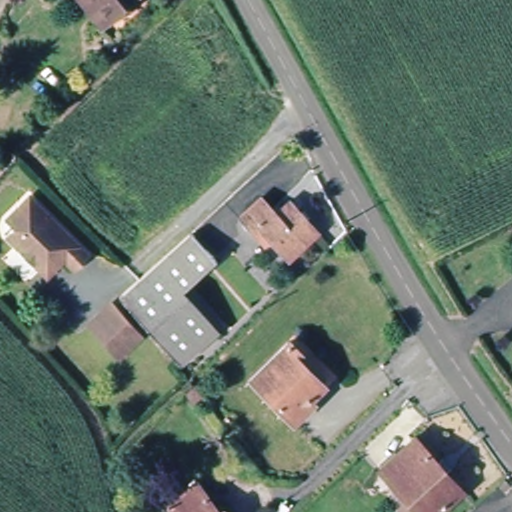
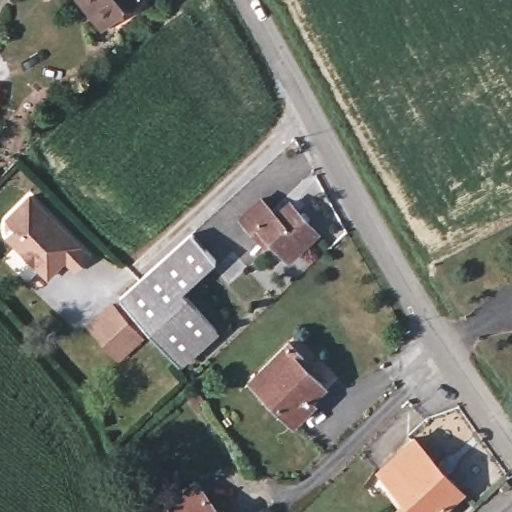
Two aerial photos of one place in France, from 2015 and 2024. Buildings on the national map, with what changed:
unchanged [(103,22),(92,9),(85,0),(133,0),(103,22)]
unchanged [(263,197),(278,212),(291,200),(318,230),(289,256),(263,225),(257,230),(244,215),(263,197)]
unchanged [(32,200),(92,262),(78,276),(68,270),(51,285),(8,240),(15,234),(7,225),(32,200)]
unchanged [(126,295),(144,280),(196,233),(221,261),(188,288),(222,327),(178,362),(126,295)]
unchanged [(120,302),(147,337),(123,356),(96,322),(120,302)]
unchanged [(307,356),(304,362),(328,381),(312,400),(318,405),(302,422),(255,380),(291,343),(307,356)]
unchanged [(401,498),(376,472),(385,463),(415,435),(465,491),(439,512),(398,512),(393,506),(401,498)]
unchanged [(226,512),(172,512),(166,504),(201,478),(226,512)]

